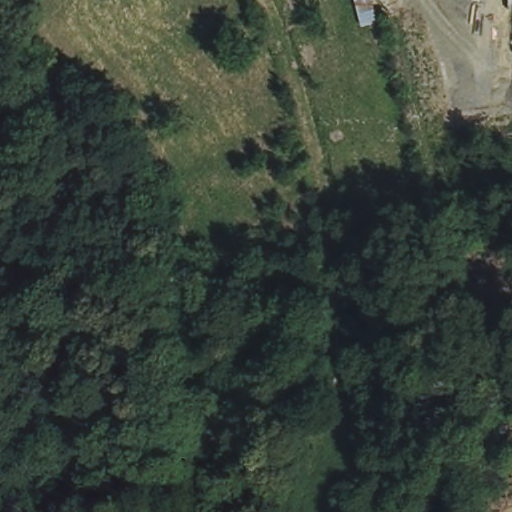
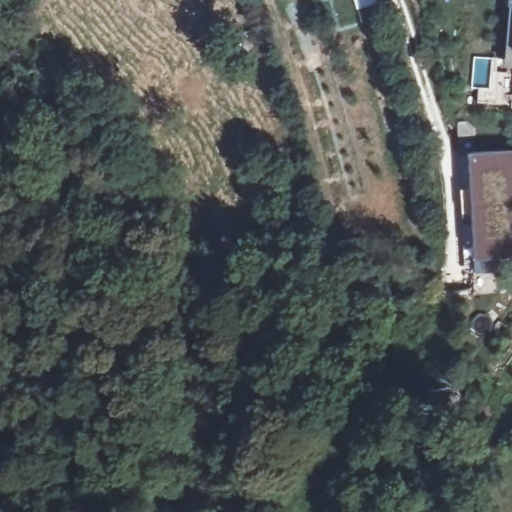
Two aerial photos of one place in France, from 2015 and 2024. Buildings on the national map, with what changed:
unchanged [(357,28),(348,0),(370,0),(376,22),(357,28)]
unchanged [(509,0),(512,0),(512,65),(506,65),(511,7),(508,6),(509,0)]
new [(474,260),(468,152),(512,151),(512,270),(499,271),(475,272),(474,260)]

